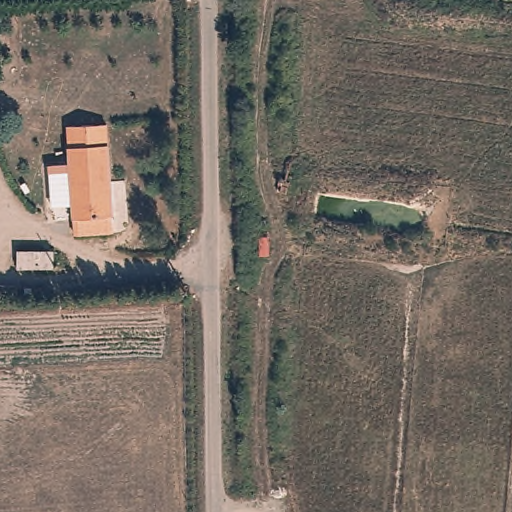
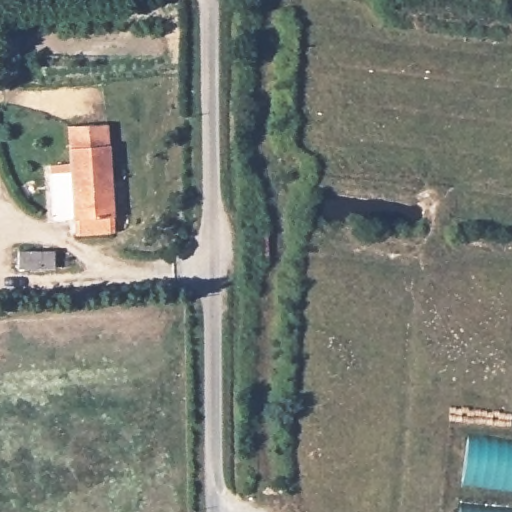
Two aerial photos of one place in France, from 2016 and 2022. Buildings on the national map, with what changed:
unchanged [(76,214),(76,199),(71,199),(71,130),(110,130),(110,199),(105,199),(105,214),(76,214)]
unchanged [(17,256),(51,257),(51,269),(17,269),(17,256)]
new [(512,444),(512,491),(462,484),(468,438),(512,444)]

